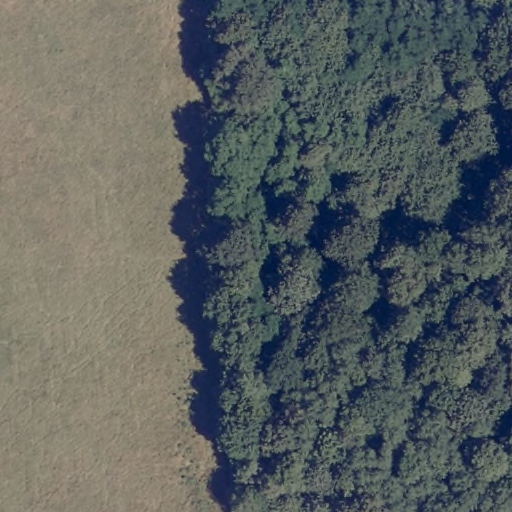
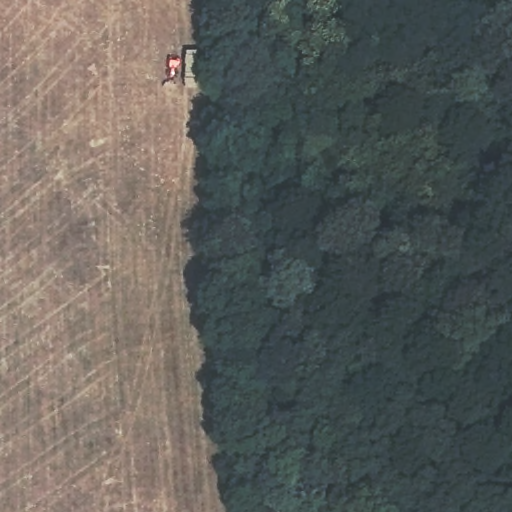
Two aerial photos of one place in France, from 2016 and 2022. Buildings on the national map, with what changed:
[]

